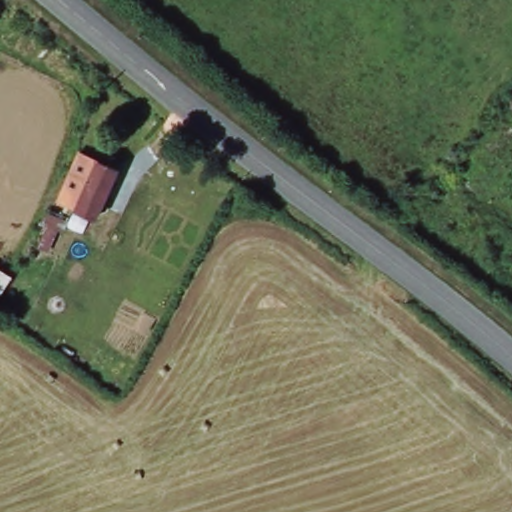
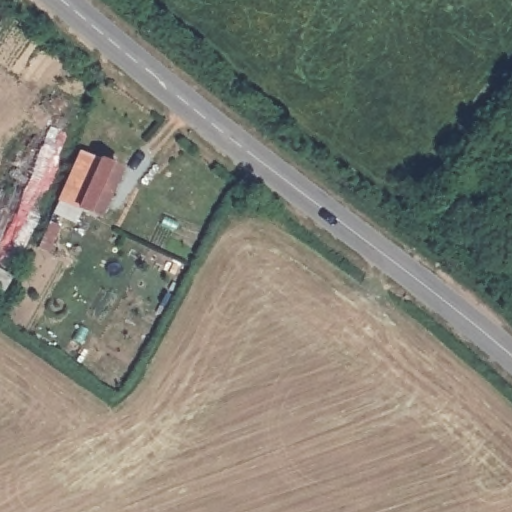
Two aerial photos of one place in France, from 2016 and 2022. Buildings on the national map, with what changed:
unchanged [(116,171),(96,219),(61,202),(82,154),(116,171)]

